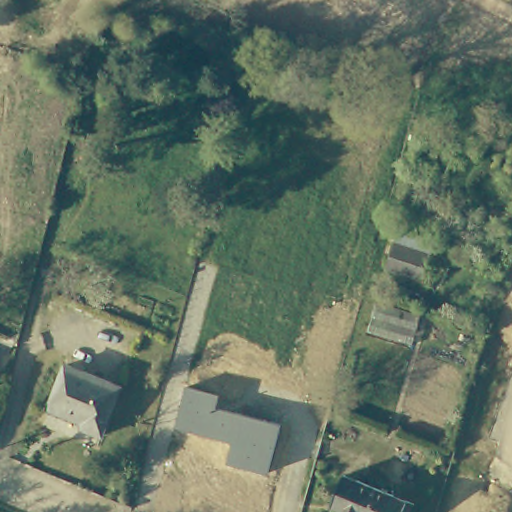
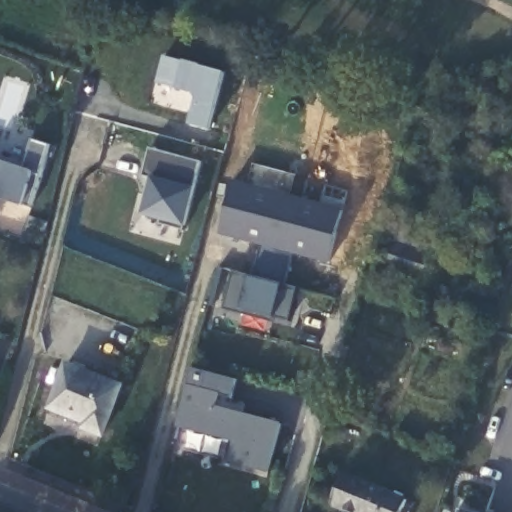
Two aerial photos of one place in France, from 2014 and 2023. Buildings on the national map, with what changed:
new [(212,133),(193,127),(202,97),(156,83),(164,56),(228,75),(212,133)]
new [(34,143),(50,149),(31,209),(24,207),(0,199),(0,161),(24,171),(34,143)]
new [(197,190),(187,228),(141,214),(152,178),(143,175),(151,150),(204,163),(197,190)]
new [(333,263),(218,236),(233,183),(347,212),(333,263)]
unchanged [(432,250),(424,276),(386,262),(394,237),(432,250)]
new [(289,321),(274,317),(273,322),(224,309),(235,273),(251,277),(283,285),(297,289),(289,321)]
unchanged [(120,389),(101,436),(82,428),(85,418),(50,404),(64,365),(120,389)]
unchanged [(235,443),(177,427),(189,385),(193,369),(237,379),(233,397),(224,394),(220,407),(283,423),(269,474),(228,464),(235,443)]
unchanged [(351,512),(331,504),(343,474),(406,499),(401,512),(351,512)]

